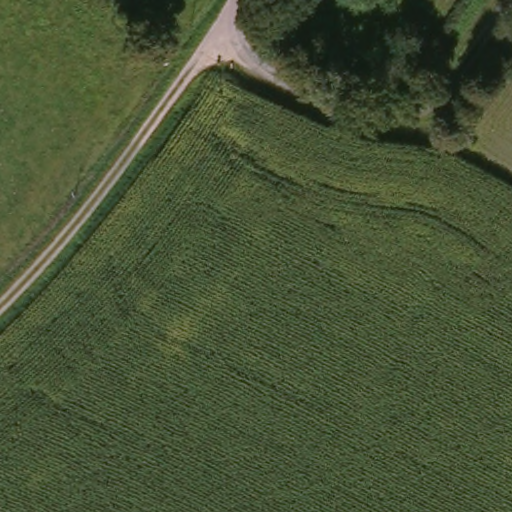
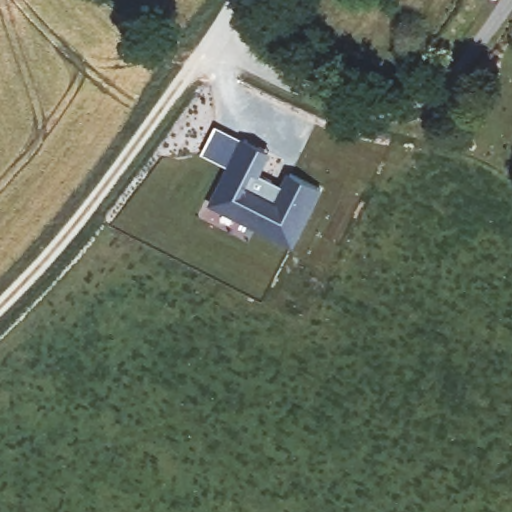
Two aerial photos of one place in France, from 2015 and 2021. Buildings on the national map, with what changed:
new [(270,150),(260,174),(284,186),(291,175),(316,187),(292,245),(271,236),(273,231),(216,205),(230,181),(224,177),(244,140),(270,150)]

